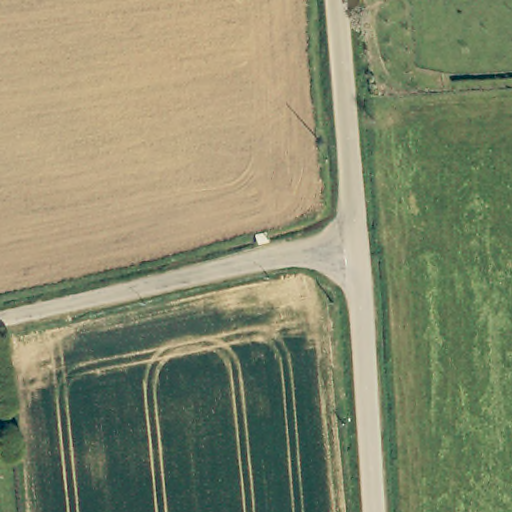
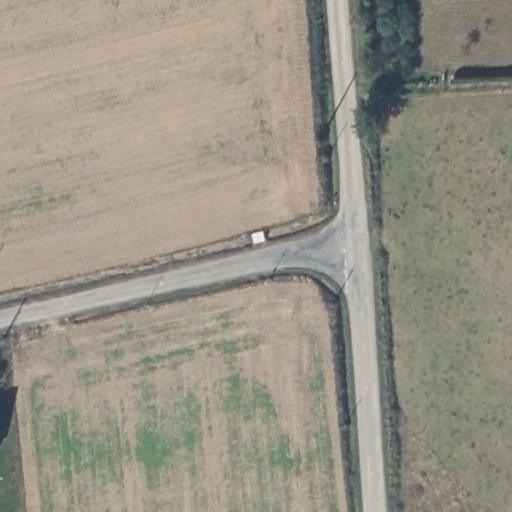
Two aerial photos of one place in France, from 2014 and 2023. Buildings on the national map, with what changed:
unchanged [(7,451),(0,451),(0,406),(3,405),(7,451)]

